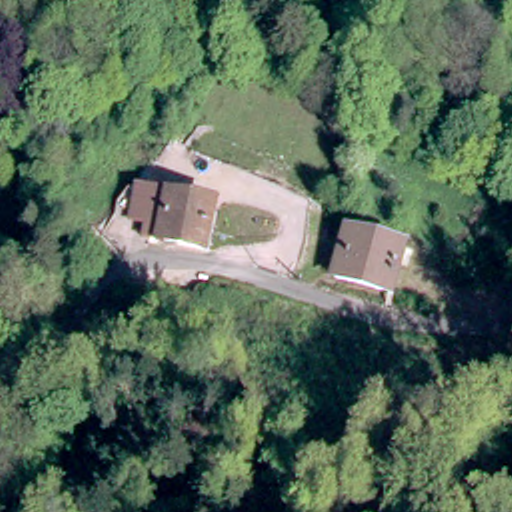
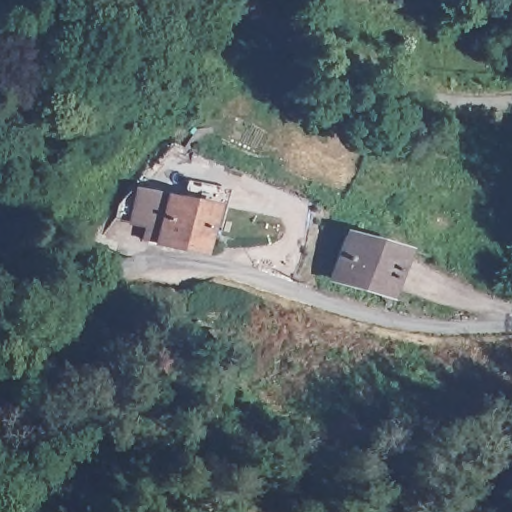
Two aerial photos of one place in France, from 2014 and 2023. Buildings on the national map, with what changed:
unchanged [(198,197),(189,242),(146,235),(156,189),(198,197)]
unchanged [(347,234),(404,249),(392,291),(336,275),(347,234)]

